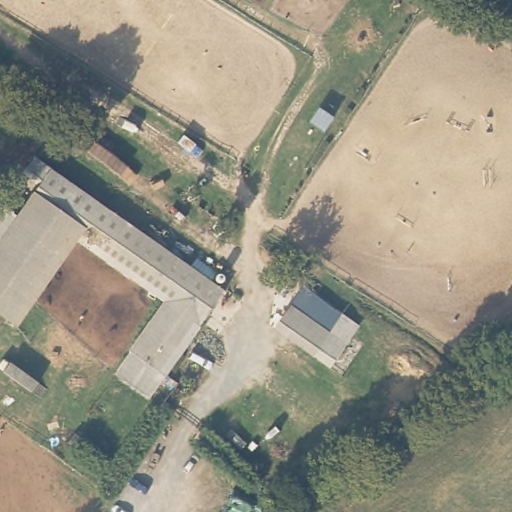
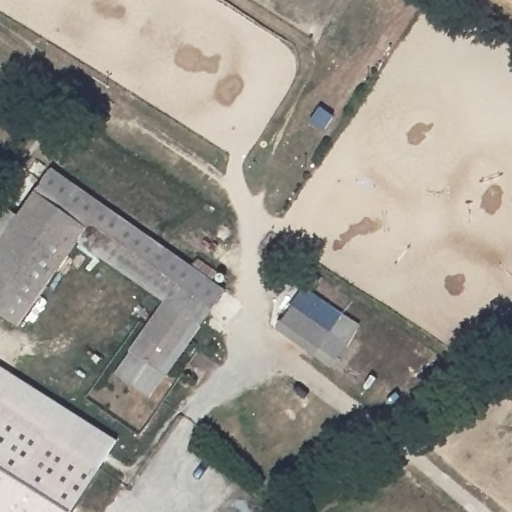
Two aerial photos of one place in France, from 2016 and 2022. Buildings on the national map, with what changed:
unchanged [(48,166),(227,283),(165,366),(133,343),(165,300),(73,239),(82,222),(33,189),(48,166)]
unchanged [(73,239),(17,322),(0,310),(0,239),(33,189),(82,222),(73,239)]
unchanged [(299,296),(340,322),(324,347),(282,320),(299,296)]
new [(0,365),(117,441),(72,512),(0,512),(0,365)]

